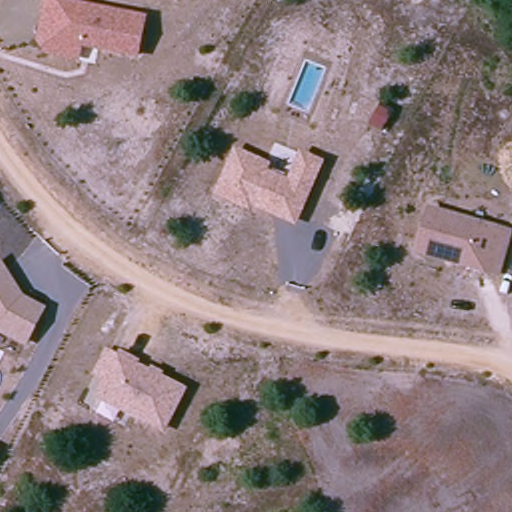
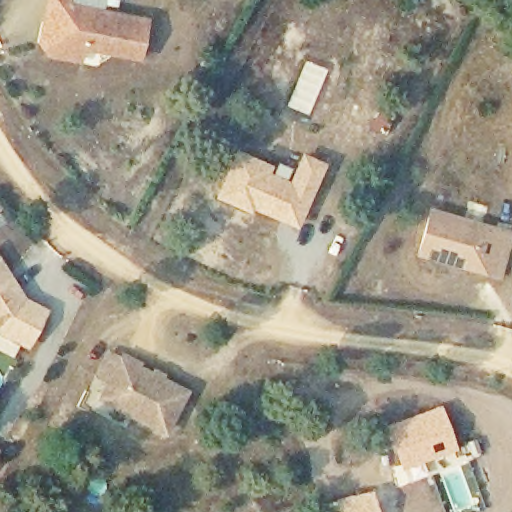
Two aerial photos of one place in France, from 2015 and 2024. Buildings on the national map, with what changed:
unchanged [(46,57),(37,45),(41,26),(45,0),(62,0),(61,7),(141,20),(135,58),(79,49),(76,62),(46,57)]
unchanged [(268,165),(265,173),(289,181),(301,153),(322,160),(296,222),(252,205),(250,212),(216,195),(234,152),(268,165)]
unchanged [(421,258),(428,216),(510,232),(502,274),(421,258)]
unchanged [(40,315),(22,348),(0,337),(0,273),(19,303),(40,315)]
unchanged [(112,370),(100,363),(111,341),(124,347),(124,346),(140,355),(138,358),(187,383),(169,420),(104,386),(112,370)]
new [(441,404),(457,451),(407,470),(385,425),(441,404)]
new [(377,512),(336,512),(332,497),(373,489),(377,512)]

